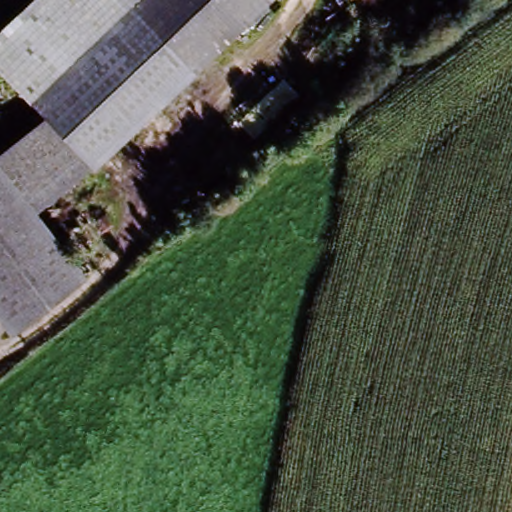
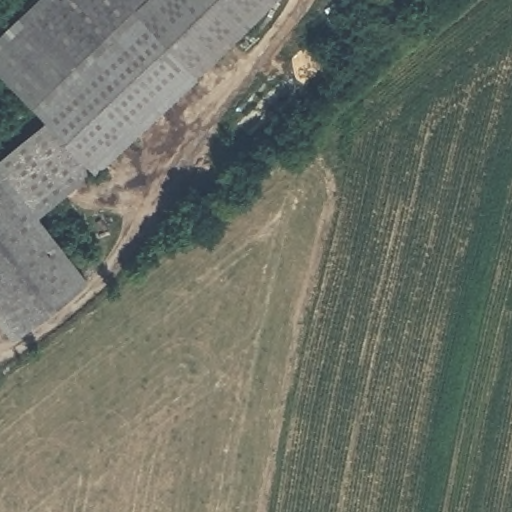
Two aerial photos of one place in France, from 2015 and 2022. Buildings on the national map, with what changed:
unchanged [(0,29),(31,0),(144,0),(29,107),(0,77),(0,29)]
unchanged [(29,107),(144,0),(276,0),(38,214),(0,162),(0,147),(36,116),(29,107)]
unchanged [(84,276),(7,334),(0,326),(0,162),(38,214),(84,276)]

